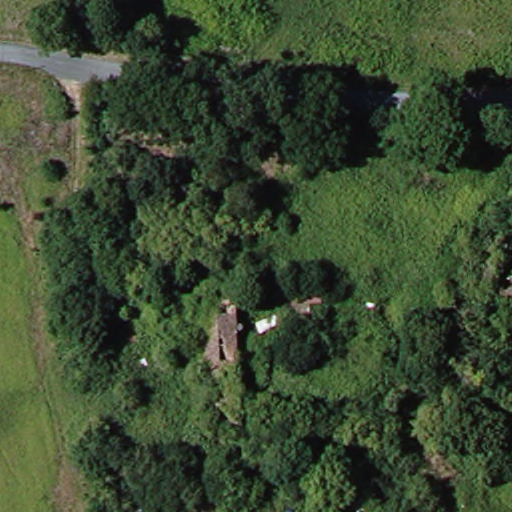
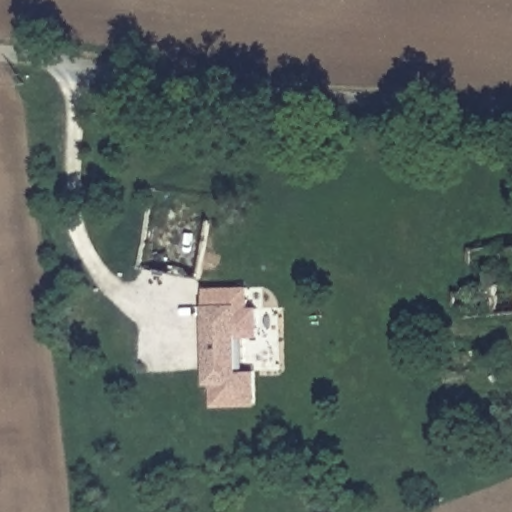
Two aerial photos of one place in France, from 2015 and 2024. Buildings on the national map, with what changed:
new [(207,409),(207,390),(199,389),(200,290),(243,289),(243,306),(254,306),(254,337),(233,337),(235,373),(249,373),(251,409),(207,409)]
demolished [(326,295),(336,294),(336,306),(319,309),(319,314),(290,317),(288,294),(326,289),(326,295)]
demolished [(218,386),(215,388),(214,304),(244,305),(246,383),(249,429),(220,429),(218,386)]

